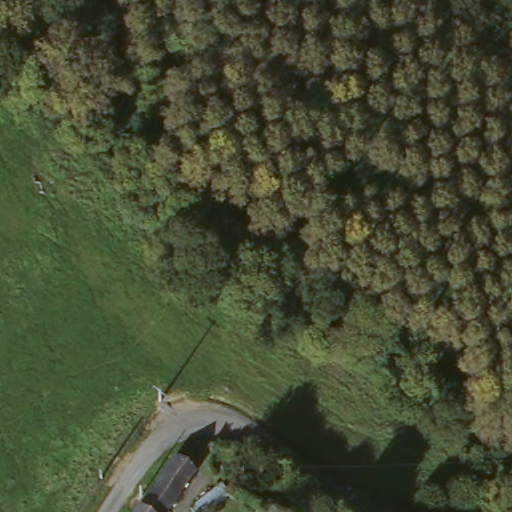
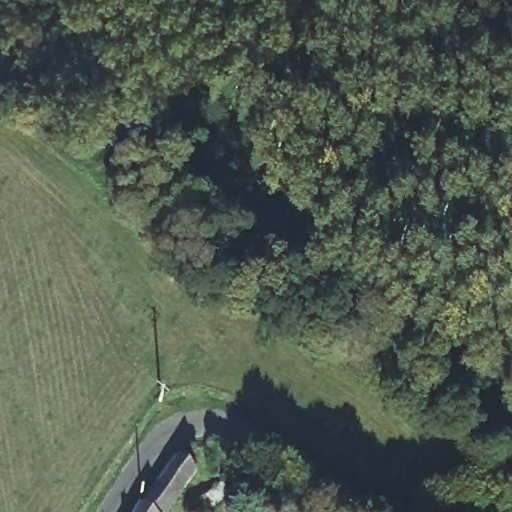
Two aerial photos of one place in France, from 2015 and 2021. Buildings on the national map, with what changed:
unchanged [(200,458),(169,512),(137,512),(176,444),(200,458)]

